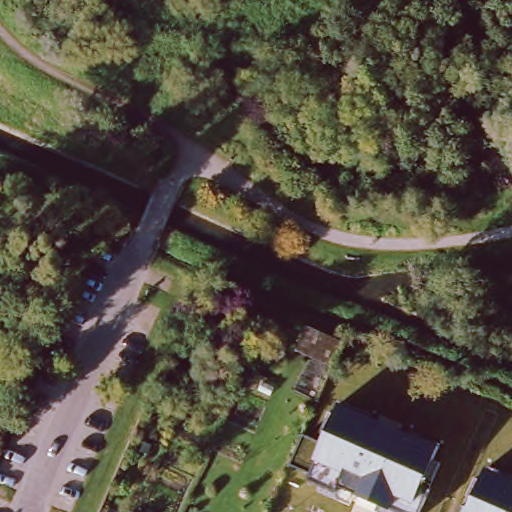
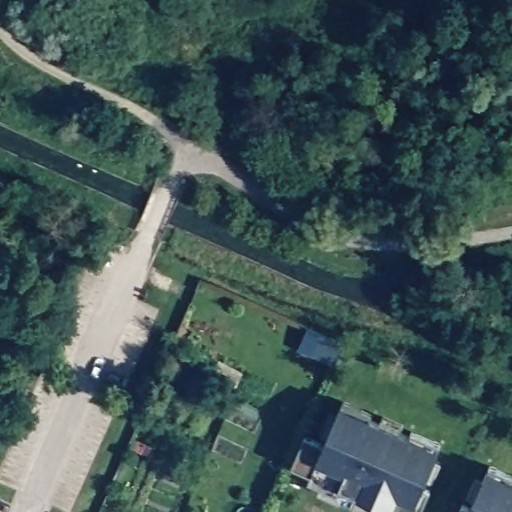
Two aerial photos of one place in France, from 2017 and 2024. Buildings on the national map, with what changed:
unchanged [(340,341),(331,364),(296,349),(292,347),(302,324),(306,325),(340,341)]
unchanged [(305,436),(322,444),(340,403),(441,443),(433,460),(440,462),(419,512),(396,512),(390,510),(357,494),(338,487),(336,492),(308,480),(310,473),(291,465),(305,436)]
unchanged [(468,509),(486,466),(512,479),(512,512),(459,512),(461,506),(468,509)]

